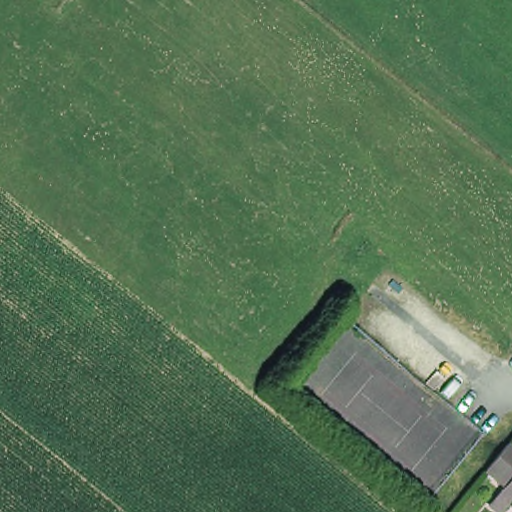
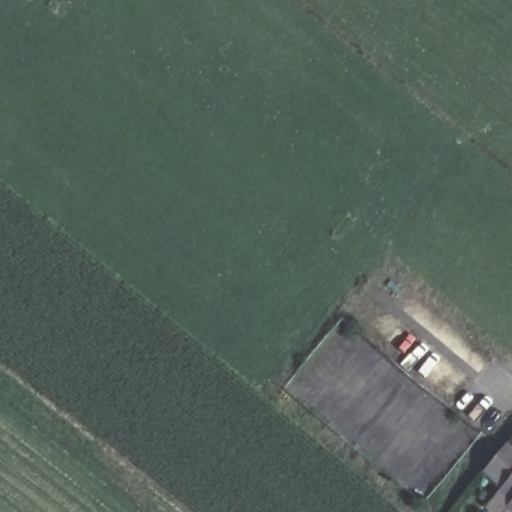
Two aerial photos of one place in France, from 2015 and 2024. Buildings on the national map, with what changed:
unchanged [(488,476),(510,448),(512,449),(512,511),(511,512),(500,512),(494,509),(508,494),(509,492),(488,476)]

